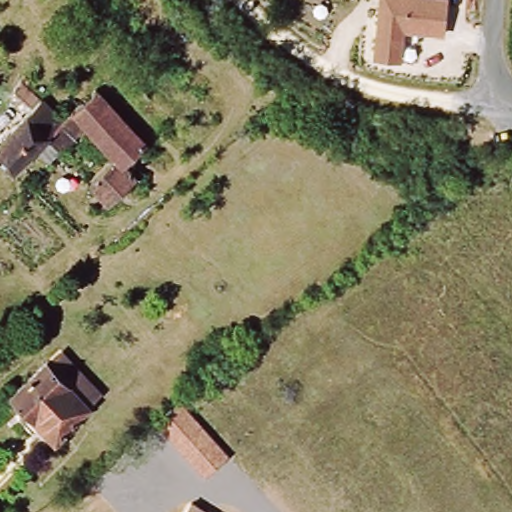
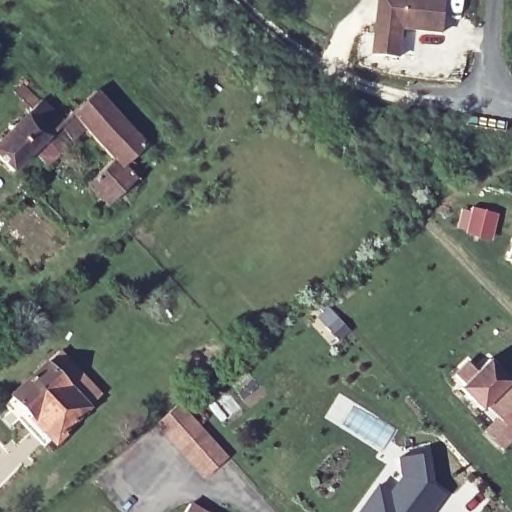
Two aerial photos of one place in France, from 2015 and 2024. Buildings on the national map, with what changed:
unchanged [(377,0),(448,0),(444,36),(404,33),(401,61),(371,58),(377,0)]
unchanged [(42,152),(16,176),(0,158),(0,143),(43,104),(61,125),(96,94),(146,148),(125,168),(136,182),(108,205),(91,186),(118,162),(91,134),(54,165),(42,152)]
new [(472,210),(497,215),(491,240),(466,234),(472,210)]
new [(509,259),(512,250),(512,260),(509,259)]
unchanged [(63,350),(105,394),(91,407),(49,363),(63,350)]
new [(468,360),(477,369),(489,358),(509,380),(484,405),(479,410),(458,388),(463,382),(454,373),(468,360)]
unchanged [(60,438),(58,436),(48,446),(9,405),(16,398),(14,396),(49,363),(91,407),(60,438)]
new [(483,429),(495,416),(484,405),(509,380),(512,378),(512,439),(501,450),(483,429)]
unchanged [(229,456),(206,477),(158,423),(179,402),(229,456)]
new [(389,492),(399,478),(396,456),(431,450),(434,484),(448,490),(433,512),(356,512),(376,483),(389,492)]
unchanged [(184,512),(191,501),(207,512),(184,512)]

